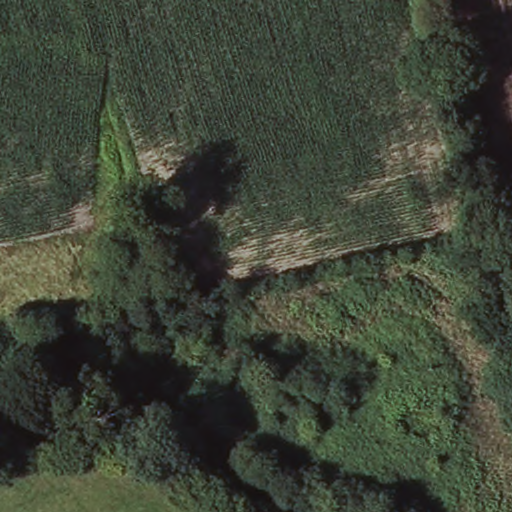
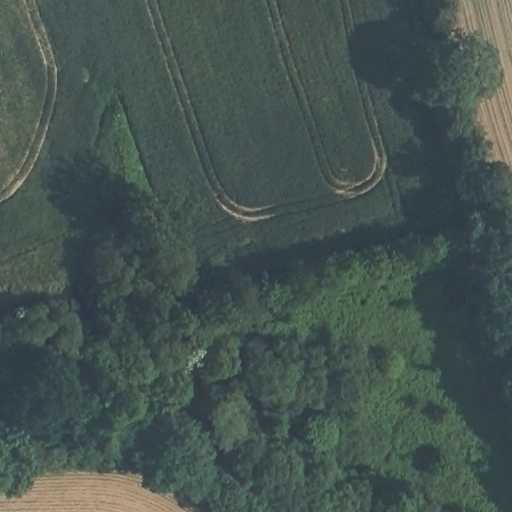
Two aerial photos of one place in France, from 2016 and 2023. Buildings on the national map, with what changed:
[]

